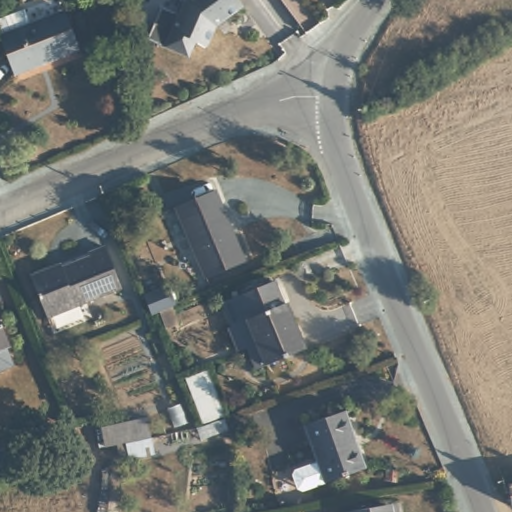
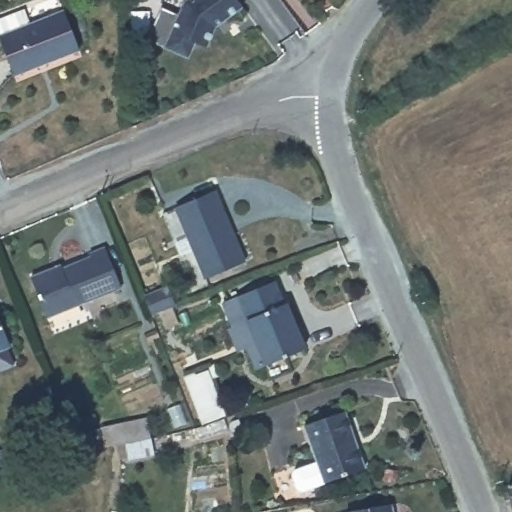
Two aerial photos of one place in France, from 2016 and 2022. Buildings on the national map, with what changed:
unchanged [(247,6),(229,18),(224,13),(211,45),(199,40),(192,54),(169,43),(151,36),(165,3),(182,10),(186,1),(188,0),(242,0),(247,6)]
unchanged [(68,7),(83,49),(18,74),(0,29),(0,16),(24,6),(29,23),(68,7)]
unchanged [(207,275),(178,206),(217,190),(246,259),(207,275)]
unchanged [(121,289),(48,316),(32,275),(51,268),(53,274),(92,259),(90,253),(107,246),(121,289)]
unchanged [(283,304),(287,302),(306,349),(257,369),(247,346),(240,349),(231,328),(235,325),(227,302),(277,283),(283,304)]
unchanged [(142,300),(166,291),(172,310),(150,319),(142,300)]
unchanged [(0,346),(0,318),(8,342),(0,346)]
unchanged [(366,465),(309,486),(296,482),(293,474),(295,467),(316,459),(304,422),(345,406),(366,465)]
unchanged [(129,458),(120,460),(117,442),(109,444),(102,445),(99,425),(122,420),(147,416),(149,435),(152,454),(129,458)]
unchanged [(0,450),(12,448),(15,465),(0,469),(0,450)]
unchanged [(508,485),(512,485),(512,500),(508,485)]
unchanged [(392,504),(392,512),(351,512),(351,509),(392,504)]

